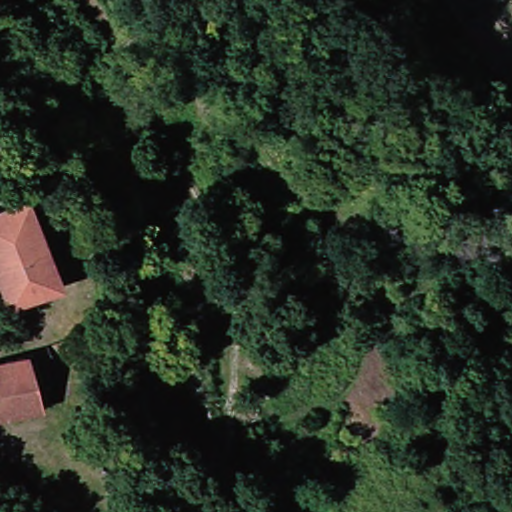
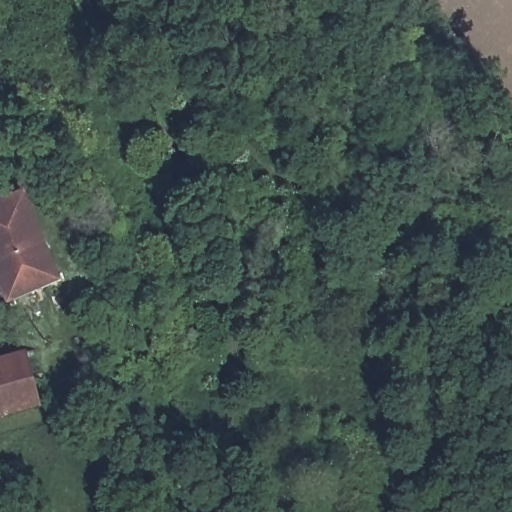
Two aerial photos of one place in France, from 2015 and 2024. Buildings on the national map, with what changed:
unchanged [(14,291),(0,252),(0,215),(42,199),(69,273),(14,291)]
unchanged [(35,346),(53,404),(0,418),(0,357),(35,346)]

